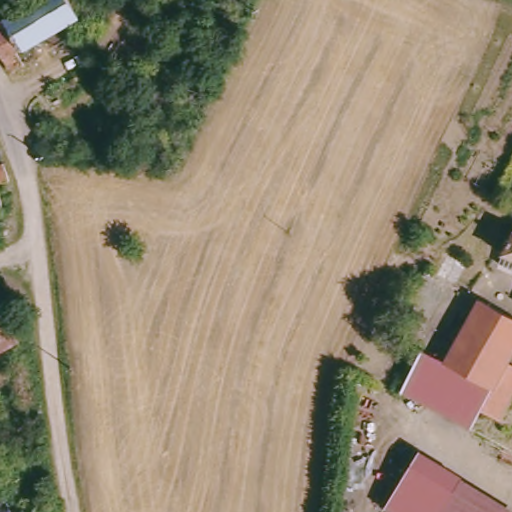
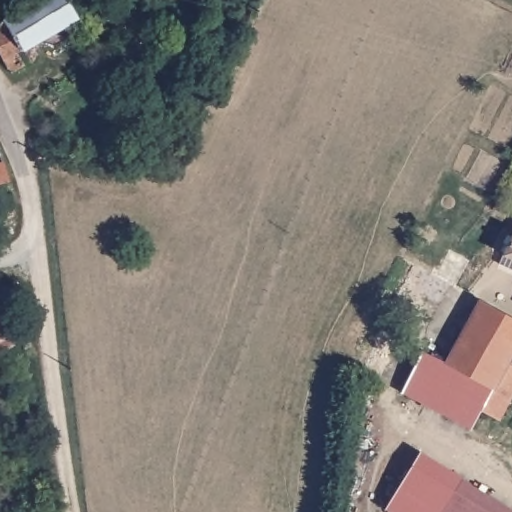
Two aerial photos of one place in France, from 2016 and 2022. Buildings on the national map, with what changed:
unchanged [(78,16),(17,52),(24,64),(11,72),(0,50),(0,22),(37,0),(69,0),(78,16)]
unchanged [(0,174),(0,161),(4,172),(0,174)]
unchanged [(500,258),(512,232),(512,263),(500,258)]
unchanged [(498,417),(481,407),(492,387),(446,363),(446,362),(481,299),(512,317),(512,349),(506,361),(512,365),(512,392),(509,396),(498,417)]
unchanged [(0,340),(0,312),(12,333),(0,340)]
unchanged [(446,363),(492,387),(481,407),(470,427),(400,389),(421,349),(446,362),(446,363)]
unchanged [(512,510),(512,512),(386,512),(421,455),(512,510)]

